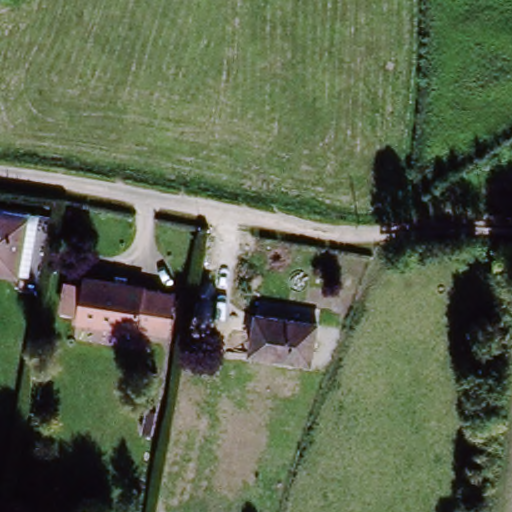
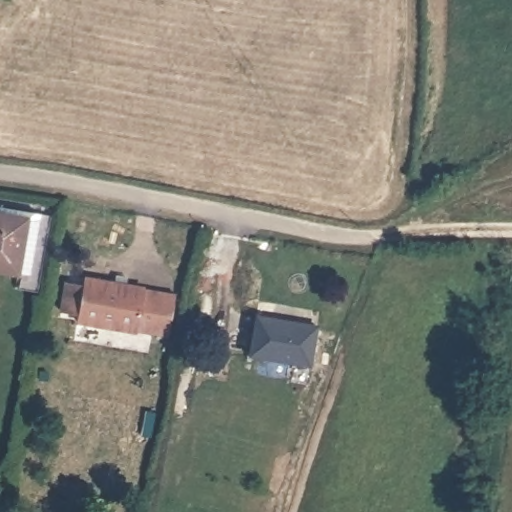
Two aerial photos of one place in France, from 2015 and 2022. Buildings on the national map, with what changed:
unchanged [(20,211),(36,213),(34,231),(27,279),(0,275),(0,221),(18,224),(20,211)]
unchanged [(175,303),(170,341),(83,328),(89,290),(175,303)]
unchanged [(314,326),(309,369),(251,362),(256,318),(314,326)]

